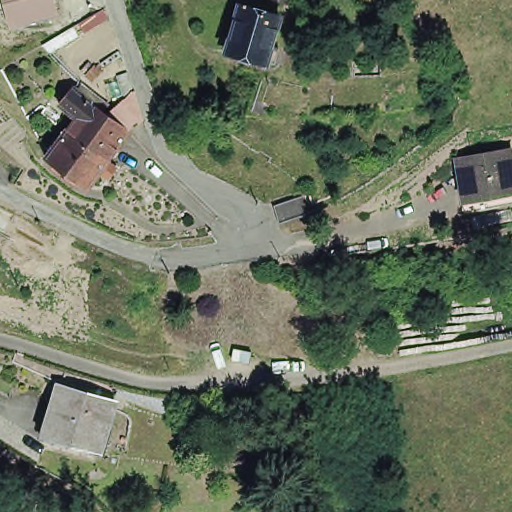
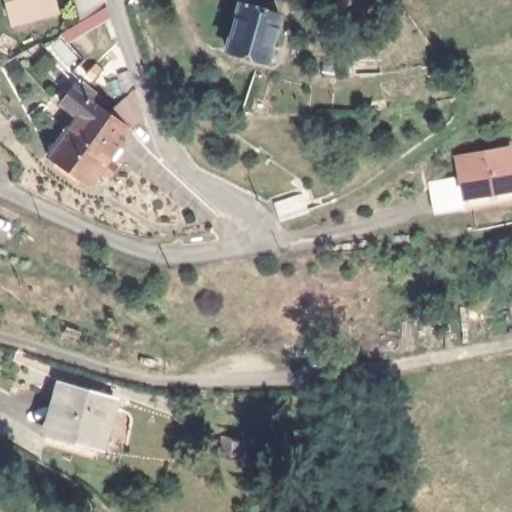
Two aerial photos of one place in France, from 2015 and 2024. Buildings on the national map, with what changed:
unchanged [(57,7),(22,19),(16,0),(55,0),(57,7)]
unchanged [(287,5),(269,0),(288,0),(287,5)]
unchanged [(269,65),(230,54),(244,7),(282,19),(269,65)]
unchanged [(402,21),(386,20),(388,10),(404,12),(402,21)]
unchanged [(138,92),(138,91),(149,120),(147,121),(133,130),(135,131),(120,150),(78,119),(66,107),(62,104),(77,90),(109,113),(138,92)]
unchanged [(91,189),(49,158),(78,119),(120,150),(91,189)]
unchanged [(511,136),(512,141),(512,193),(457,198),(452,145),(511,136)]
unchanged [(307,215),(279,224),(273,206),(301,196),(307,215)]
unchanged [(98,443),(44,428),(57,385),(110,400),(98,443)]
unchanged [(237,462),(218,458),(221,439),(240,442),(237,462)]

